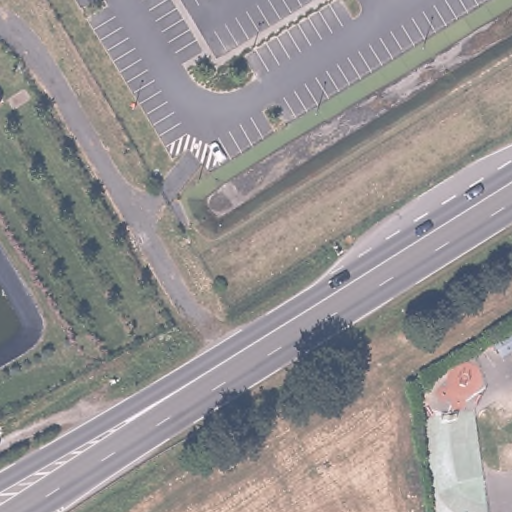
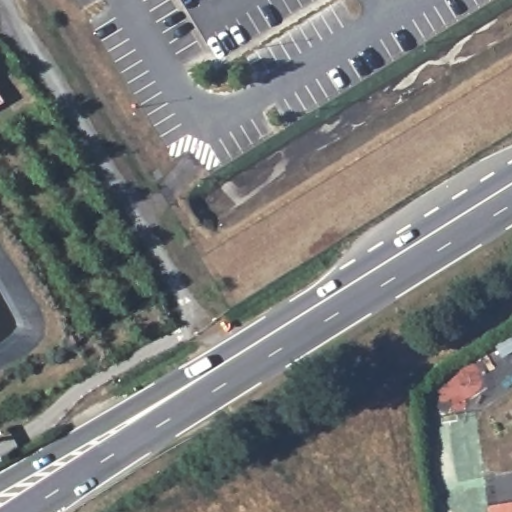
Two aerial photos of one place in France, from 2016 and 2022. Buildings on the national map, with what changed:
unchanged [(2,102),(0,104),(0,98),(2,102)]

